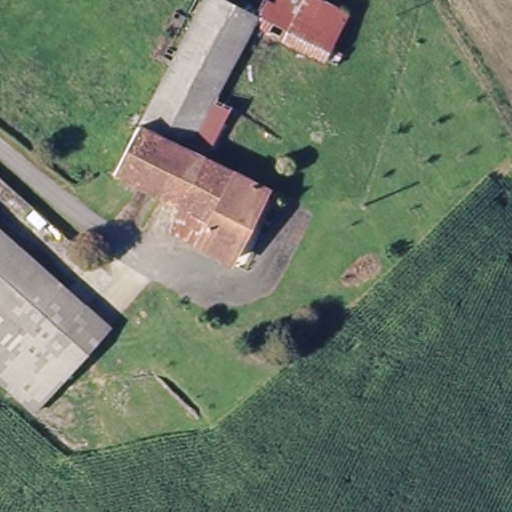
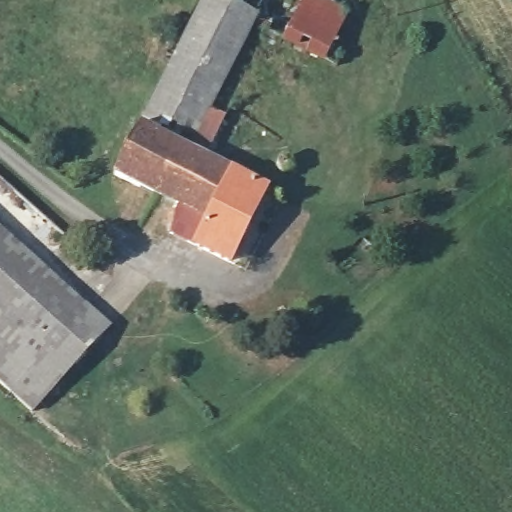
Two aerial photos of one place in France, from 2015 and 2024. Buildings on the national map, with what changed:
unchanged [(253,27),(203,4),(205,0),(299,0),(284,36),(253,27)]
unchanged [(339,7),(320,51),(284,36),(299,0),(322,0),(339,7)]
unchanged [(203,4),(253,27),(221,104),(216,116),(194,104),(164,95),(203,4)]
unchanged [(183,240),(192,214),(143,195),(125,188),(131,172),(137,157),(164,95),(194,104),(216,116),(196,160),(217,169),(277,197),(256,243),(252,241),(241,264),(210,251),(183,240)]
unchanged [(221,104),(239,114),(235,127),(217,169),(196,160),(216,116),(221,104)]
unchanged [(257,152),(262,138),(295,152),(289,167),(257,152)]
unchanged [(0,233),(63,286),(90,307),(112,327),(105,337),(89,357),(38,415),(0,383),(0,233)]

